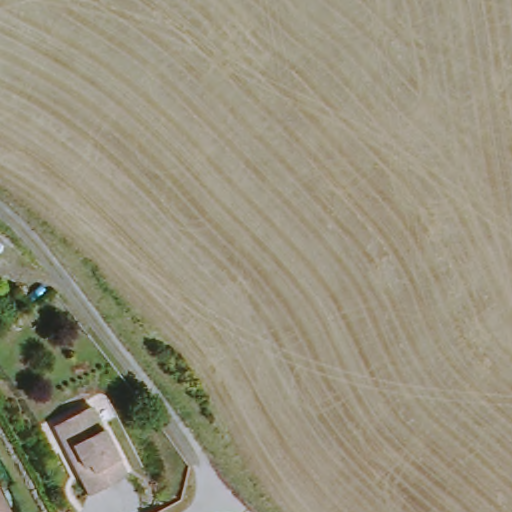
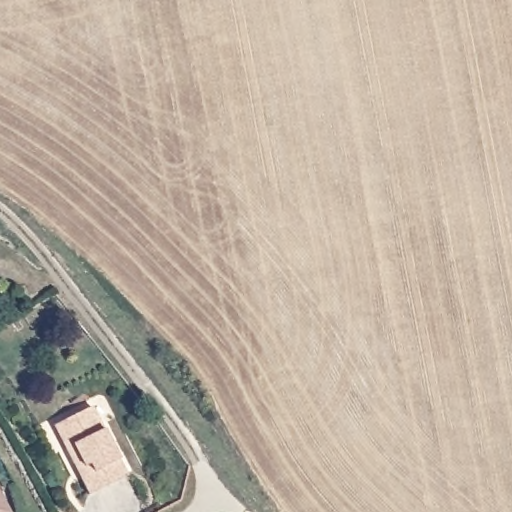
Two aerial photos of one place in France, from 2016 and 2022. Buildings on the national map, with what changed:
unchanged [(70,448),(59,424),(74,418),(100,407),(131,476),(92,494),(84,476),(78,464),(70,448)]
unchanged [(0,486),(12,512),(0,512),(0,486)]

